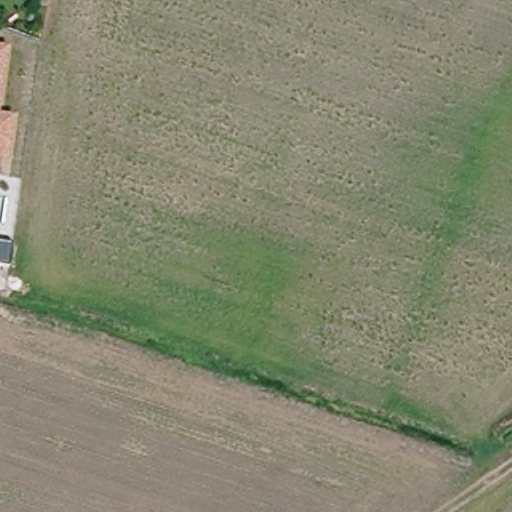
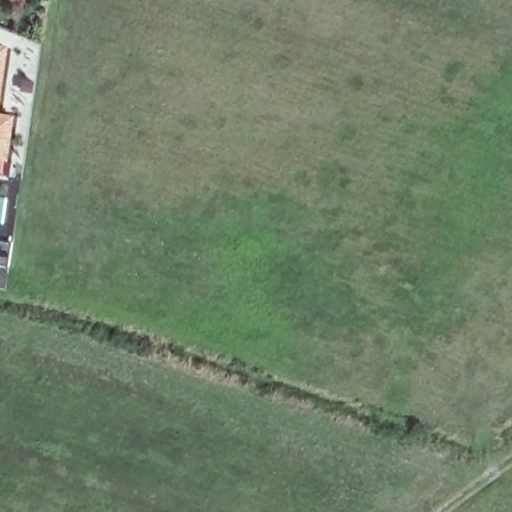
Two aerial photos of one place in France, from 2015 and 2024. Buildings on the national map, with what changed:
unchanged [(3,44),(10,45),(5,79),(0,108),(0,43),(3,44)]
unchanged [(15,113),(10,154),(0,152),(0,111),(15,113)]

